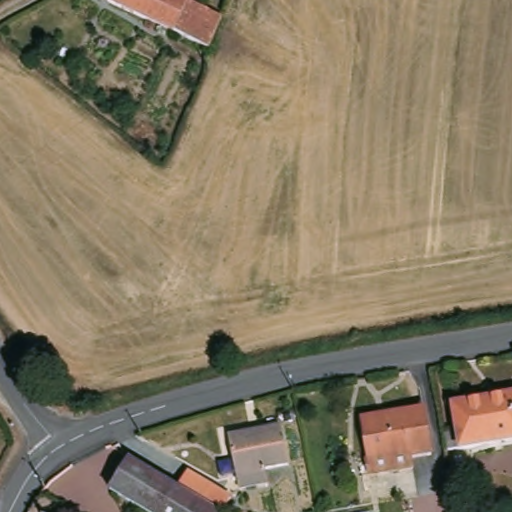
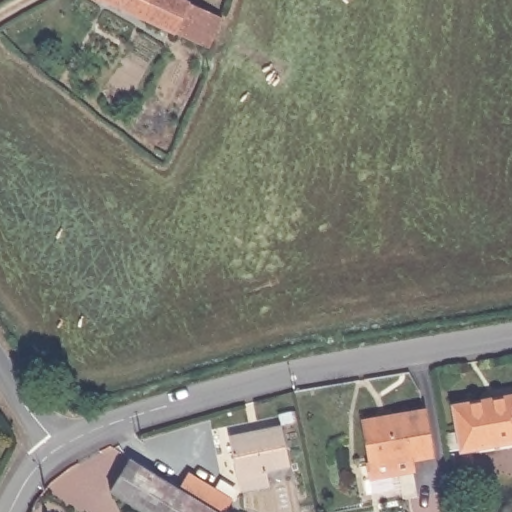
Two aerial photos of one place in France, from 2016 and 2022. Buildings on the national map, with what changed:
unchanged [(162,50),(157,48),(165,30),(140,17),(134,14),(104,0),(188,0),(203,7),(225,17),(215,39),(214,42),(210,51),(207,49),(187,40),(180,57),(162,50)]
unchanged [(512,439),(463,446),(456,400),(512,392),(512,439)]
unchanged [(368,414),(429,405),(435,450),(415,453),(416,462),(376,468),(368,414)]
unchanged [(286,425),(292,466),(269,469),(270,482),(238,486),(231,433),(286,425)]
unchanged [(127,454),(177,483),(186,468),(229,493),(221,508),(220,512),(152,512),(109,487),(127,454)]

